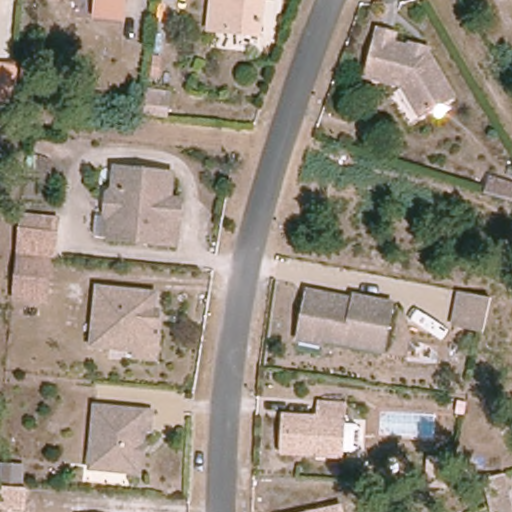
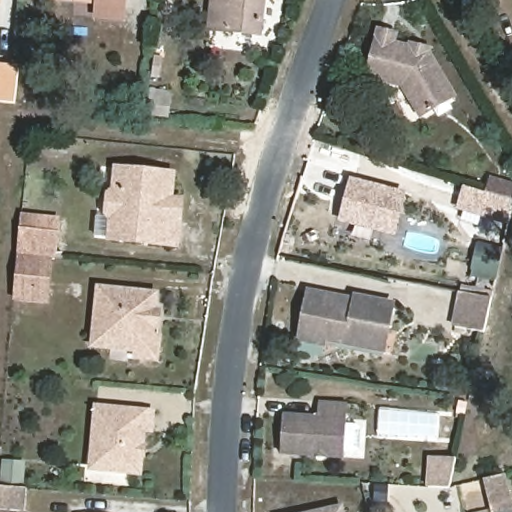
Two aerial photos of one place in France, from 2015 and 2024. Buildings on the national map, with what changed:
unchanged [(94,8),(95,0),(123,0),(122,10),(94,8)]
unchanged [(224,34),(227,0),(262,0),(258,37),(224,34)]
unchanged [(393,32),(392,41),(427,50),(452,93),(421,112),(409,94),(402,83),(367,73),(378,28),(393,32)]
unchanged [(17,69),(14,105),(0,103),(0,68),(17,69)]
unchanged [(170,169),(166,214),(182,215),(180,242),(112,235),(115,208),(110,208),(111,193),(117,192),(120,164),(170,169)]
new [(349,178),(407,192),(395,237),(340,224),(349,178)]
new [(488,180),(512,187),(512,203),(507,225),(457,210),(464,187),(483,194),(488,180)]
demolished [(512,187),(512,203),(483,194),(488,180),(512,187)]
unchanged [(52,219),(49,259),(15,255),(19,217),(52,219)]
unchanged [(49,302),(12,298),(15,255),(49,259),(53,259),(49,302)]
unchanged [(155,299),(151,348),(140,357),(91,352),(96,294),(155,299)]
unchanged [(491,299),(483,333),(454,327),(460,294),(491,299)]
unchanged [(341,309),(345,316),(352,318),(355,303),(392,311),(383,357),(325,346),(320,341),(302,338),(307,303),(341,309)]
unchanged [(318,420),(320,405),(348,408),(343,460),(280,454),(283,416),(318,420)]
unchanged [(152,418),(152,434),(143,434),(139,477),(106,474),(107,462),(92,461),(96,413),(152,418)]
unchanged [(448,489),(427,488),(429,458),(455,459),(448,489)]
unchanged [(482,481),(502,476),(510,507),(490,512),(482,481)]
unchanged [(23,511),(0,509),(0,488),(25,489),(23,511)]
unchanged [(341,509),(341,512),(324,512),(341,509)]

